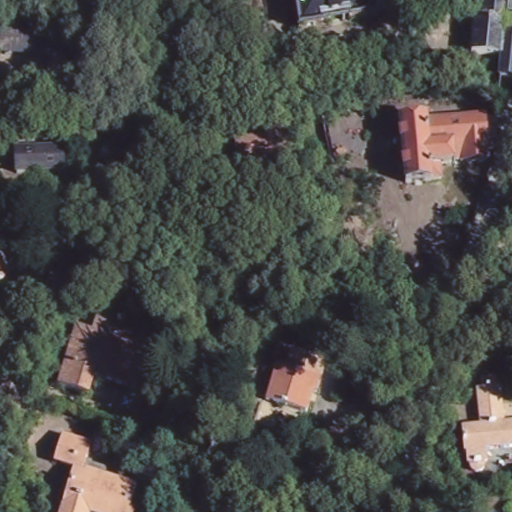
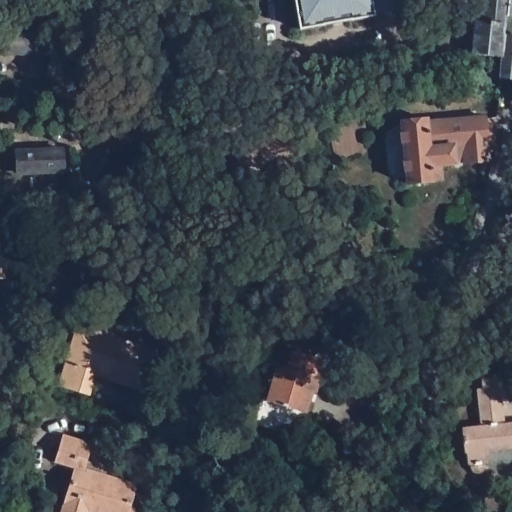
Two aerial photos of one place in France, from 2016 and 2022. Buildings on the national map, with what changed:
unchanged [(368,14),(368,17),(294,32),(289,0),(380,0),(382,11),(368,14)]
unchanged [(489,0),(512,0),(512,13),(506,13),(505,31),(487,30),(489,0)]
unchanged [(502,78),(503,58),(478,57),(479,37),(505,39),(512,39),(512,78),(502,78)]
unchanged [(42,79),(0,75),(0,40),(51,44),(42,79)]
unchanged [(489,157),(482,158),(482,166),(435,170),(436,185),(400,188),(395,126),(420,124),(421,127),(479,122),(479,125),(492,124),(489,157)]
unchanged [(290,166),(238,172),(234,141),(265,137),(263,126),(285,123),(290,166)]
unchanged [(52,168),(6,169),(5,147),(52,146),(52,168)]
unchanged [(305,271),(277,265),(282,245),(308,250),(305,271)]
unchanged [(148,368),(140,391),(89,376),(83,394),(53,385),(65,345),(70,346),(75,327),(87,332),(91,320),(109,325),(105,338),(135,347),(153,352),(148,368)]
unchanged [(315,398),(311,397),(305,419),(266,407),(277,371),(286,373),(291,356),(325,366),(315,398)]
unchanged [(486,454),(488,467),(484,467),(484,470),(484,472),(483,473),(481,475),(480,476),(477,476),(475,475),(474,473),(473,471),(473,469),(468,470),(467,458),(465,458),(462,435),(480,432),(476,395),(479,394),(478,382),(491,381),(492,392),(496,392),(500,430),(512,428),(512,450),(486,454)]
unchanged [(69,472),(50,467),(58,441),(86,448),(79,475),(131,490),(125,512),(57,512),(69,472)]

